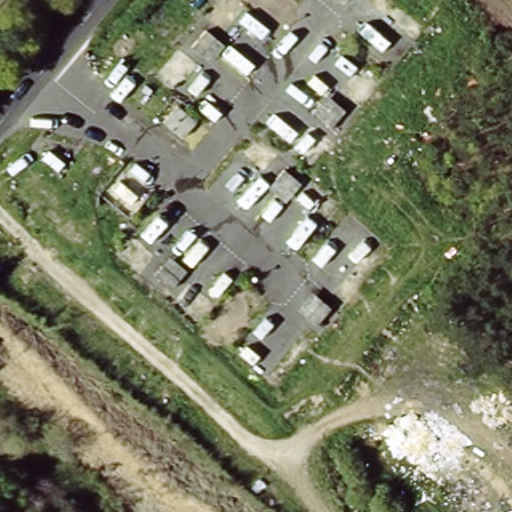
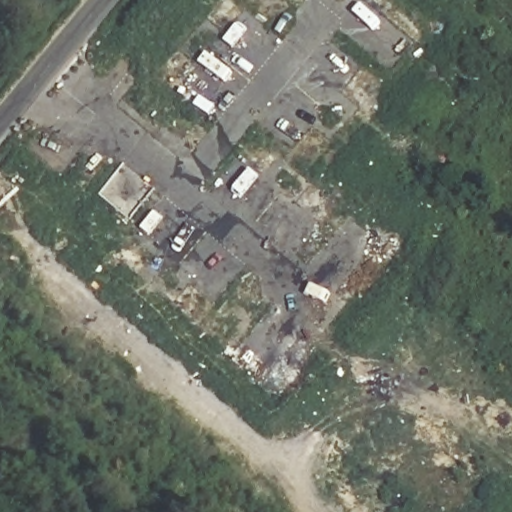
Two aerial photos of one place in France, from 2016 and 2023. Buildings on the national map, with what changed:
unchanged [(343,8),(334,0),(350,0),(343,8)]
unchanged [(210,64),(190,48),(204,31),(225,47),(210,64)]
unchanged [(344,112),(331,129),(312,114),(325,98),(344,112)]
unchanged [(197,123),(182,139),(162,122),(177,105),(197,123)]
unchanged [(301,185),(285,204),(268,190),(283,171),(301,185)]
unchanged [(186,274),(171,291),(153,276),(170,259),(186,274)]
unchanged [(330,309),(315,327),(296,312),(312,293),(330,309)]

